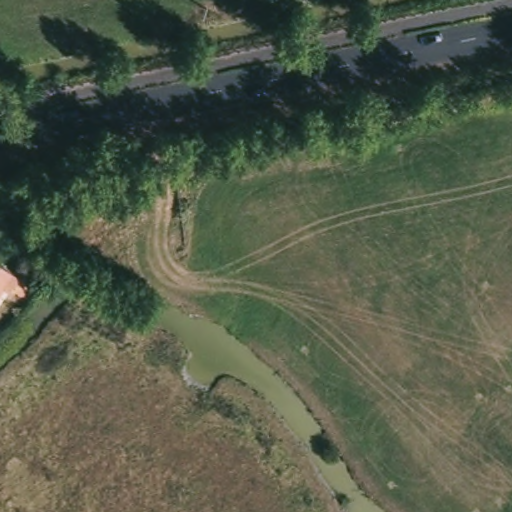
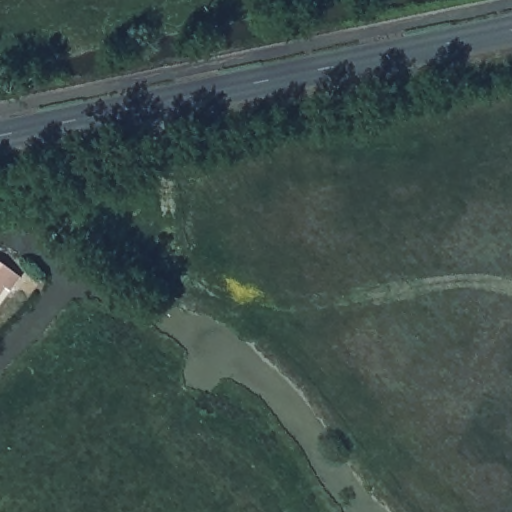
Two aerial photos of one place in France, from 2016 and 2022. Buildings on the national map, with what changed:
unchanged [(0,300),(0,266),(17,278),(0,300)]

